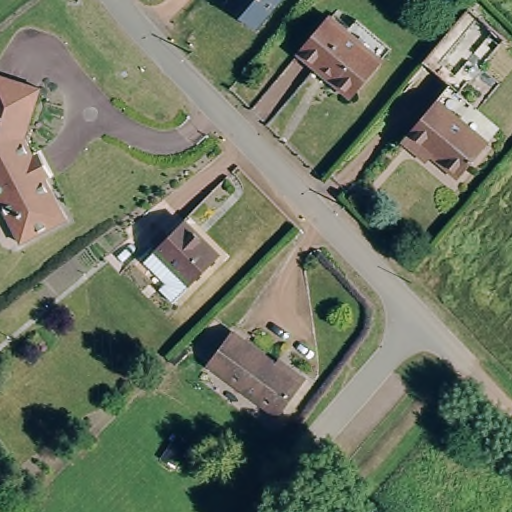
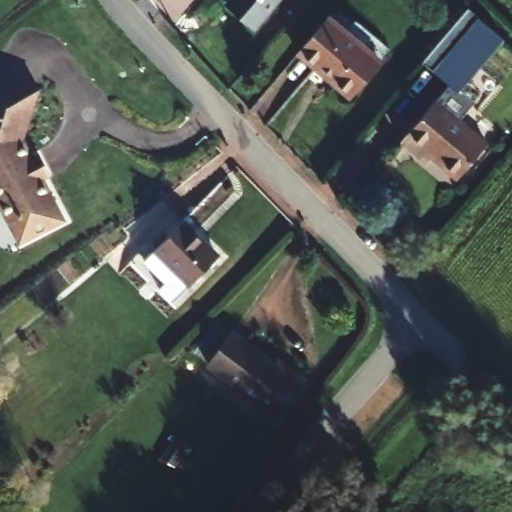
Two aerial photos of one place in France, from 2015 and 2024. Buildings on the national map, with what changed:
unchanged [(275,0),(251,29),(225,6),(230,0),(275,0)]
unchanged [(339,22),(349,14),(394,54),(386,61),(356,96),(293,44),(322,8),(339,22)]
new [(507,41),(461,95),(425,65),(471,11),(507,41)]
unchanged [(47,87),(30,135),(35,145),(0,171),(0,72),(47,87)]
unchanged [(421,149),(404,134),(439,92),(488,136),(458,170),(429,143),(421,149)]
unchanged [(68,215),(21,237),(0,194),(0,171),(35,145),(68,215)]
unchanged [(171,270),(151,249),(188,209),(223,241),(177,290),(165,276),(171,270)]
unchanged [(238,324),(281,361),(286,358),(302,373),(275,406),(211,354),(238,324)]

